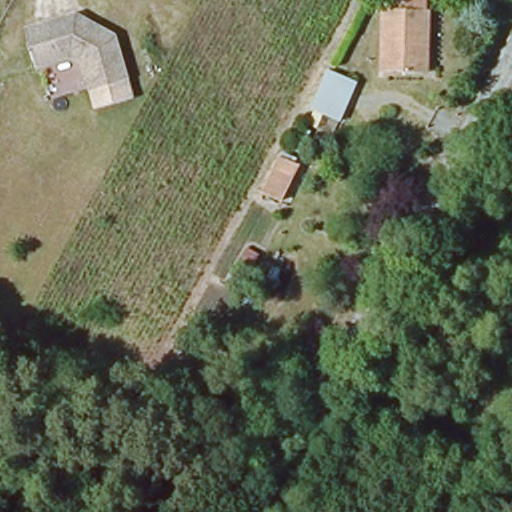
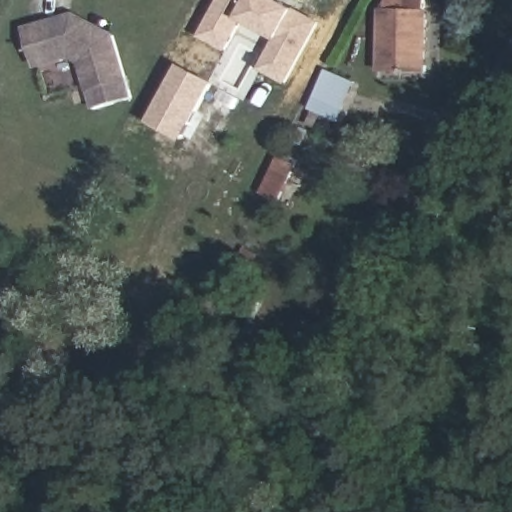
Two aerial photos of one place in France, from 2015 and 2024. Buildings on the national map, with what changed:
new [(323,19),(288,84),(260,71),(276,38),(244,21),(229,51),(201,37),(220,0),(285,0),(323,19)]
unchanged [(378,77),(379,19),(405,16),(405,2),(424,3),(422,77),(378,77)]
unchanged [(93,109),(87,86),(81,61),(71,52),(36,61),(28,22),(75,10),(113,33),(124,67),(127,75),(133,99),(93,109)]
new [(179,64),(215,83),(182,141),(147,121),(179,64)]
unchanged [(359,82),(341,122),(309,111),(326,69),(359,82)]
unchanged [(279,205),(256,200),(275,163),(295,170),(279,205)]

